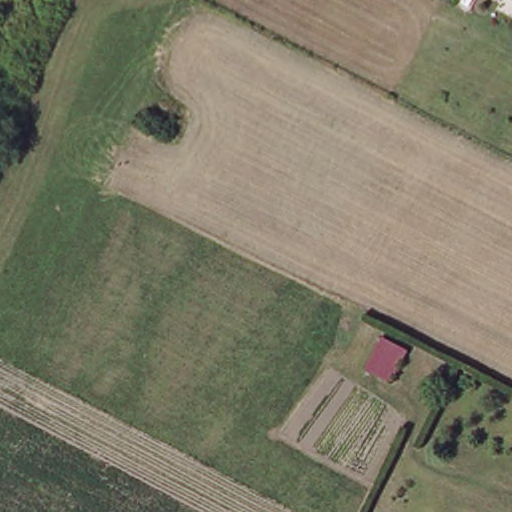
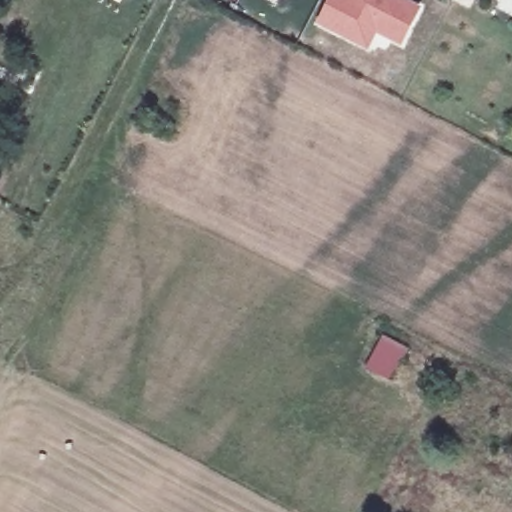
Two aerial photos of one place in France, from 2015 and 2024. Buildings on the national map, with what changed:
new [(369,50),(320,25),(331,0),(407,0),(422,8),(402,46),(378,34),(369,50)]
unchanged [(483,0),(496,0),(492,6),(483,0)]
unchanged [(505,0),(512,0),(512,4),(505,0)]
unchanged [(409,348),(390,383),(367,370),(384,335),(409,348)]

